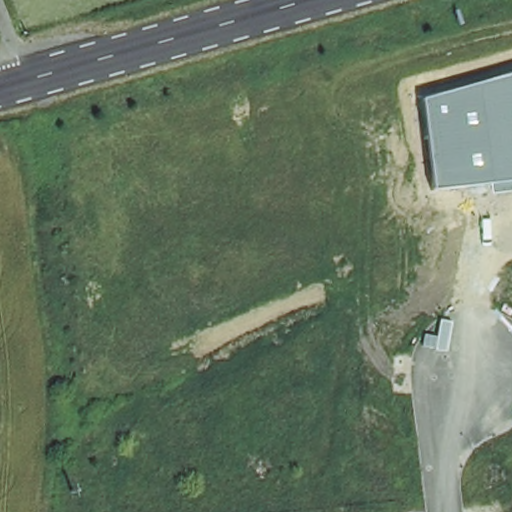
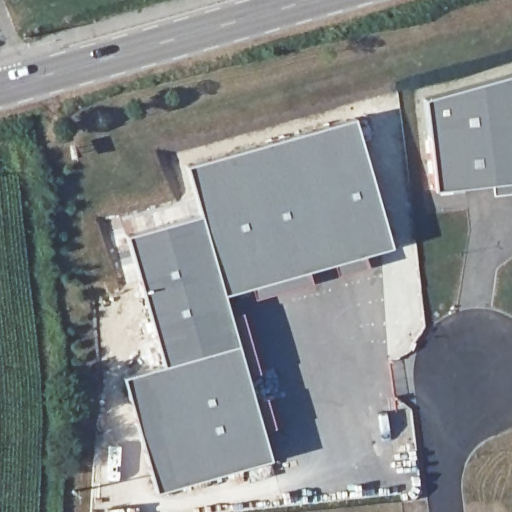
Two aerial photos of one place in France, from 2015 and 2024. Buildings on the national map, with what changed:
unchanged [(512,72),(512,180),(433,189),(423,98),(512,72)]
new [(366,266),(337,274),(334,262),(306,270),(310,282),(255,298),(253,285),(223,294),(229,317),(241,313),(258,373),(246,376),(253,401),(266,398),(274,429),(261,432),(269,459),(156,492),(122,378),(163,366),(125,237),(200,215),(186,166),(354,118),(390,247),(363,254),(366,266)]

